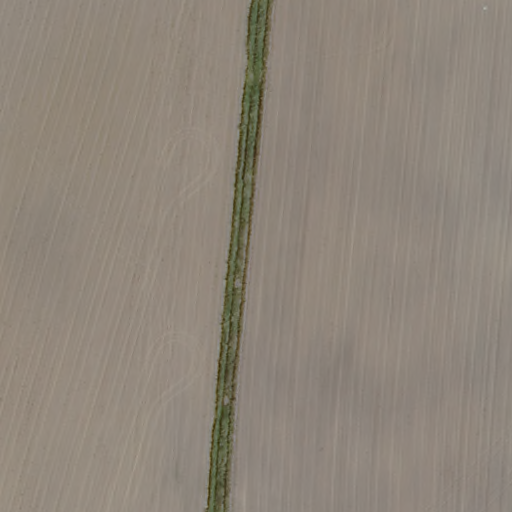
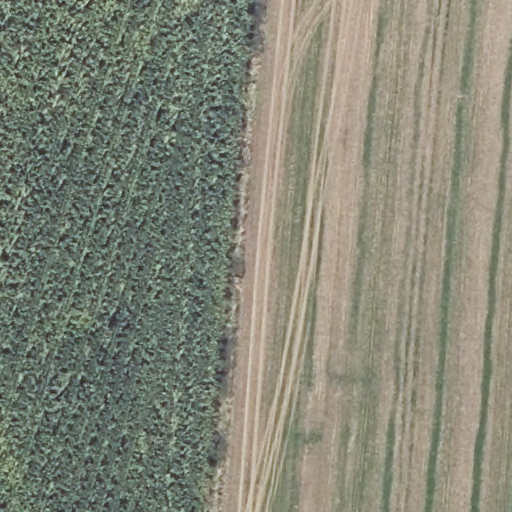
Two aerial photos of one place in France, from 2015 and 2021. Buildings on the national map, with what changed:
[]

